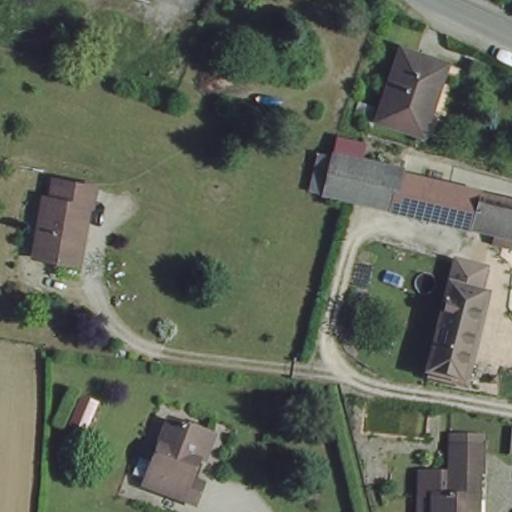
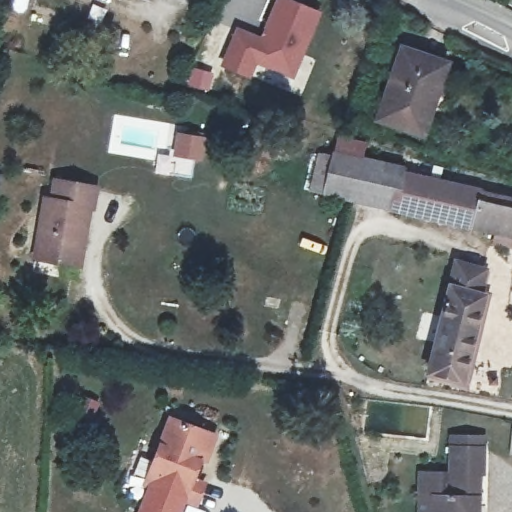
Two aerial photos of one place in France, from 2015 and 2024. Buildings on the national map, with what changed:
new [(273,0),(290,0),(321,13),(293,80),(257,65),(250,79),(220,66),(235,27),(260,37),(273,0)]
unchanged [(440,61),(429,94),(439,97),(427,132),(383,117),(406,49),(440,61)]
unchanged [(482,230),(382,205),(363,200),(338,194),(315,187),(325,149),(348,155),(369,161),(384,164),(387,170),(410,176),(512,203),(512,248),(479,240),(482,230)]
unchanged [(63,263),(33,257),(48,197),(57,197),(60,181),(100,191),(96,209),(92,208),(78,255),(75,267),(63,263)]
unchanged [(441,319),(446,291),(449,263),(477,267),(478,289),(469,347),(436,340),(441,319)]
unchanged [(428,377),(436,340),(469,347),(463,382),(428,377)]
unchanged [(66,422),(78,396),(94,402),(83,428),(66,422)]
unchanged [(193,505),(185,502),(145,487),(141,485),(145,473),(167,417),(206,432),(188,479),(193,482),(201,485),(193,505)]
unchanged [(480,472),(478,512),(437,512),(437,495),(461,495),(462,472),(452,472),(453,447),(486,448),(485,473),(480,472)]

